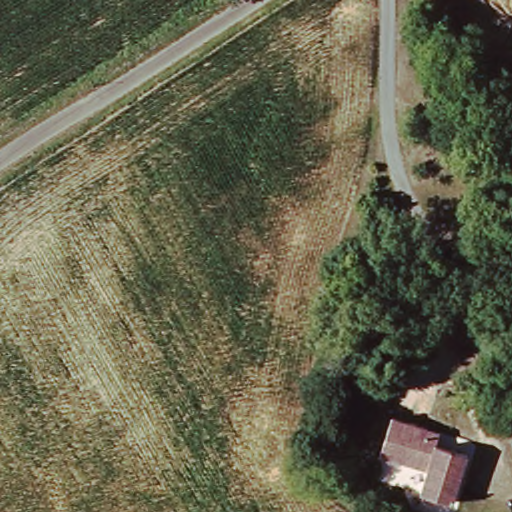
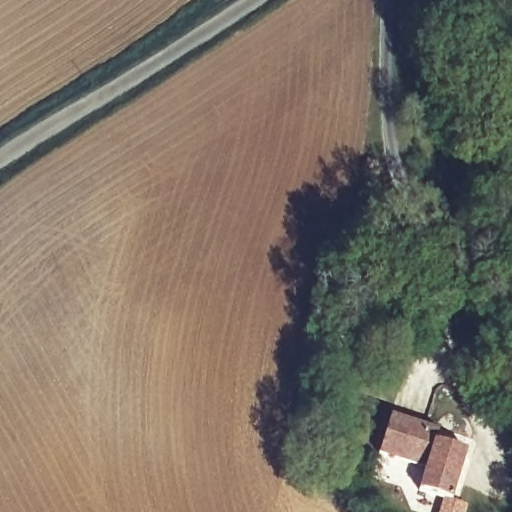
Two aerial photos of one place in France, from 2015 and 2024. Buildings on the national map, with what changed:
unchanged [(467,436),(466,451),(475,452),(457,502),(423,493),(431,471),(385,457),(397,417),(467,436)]

